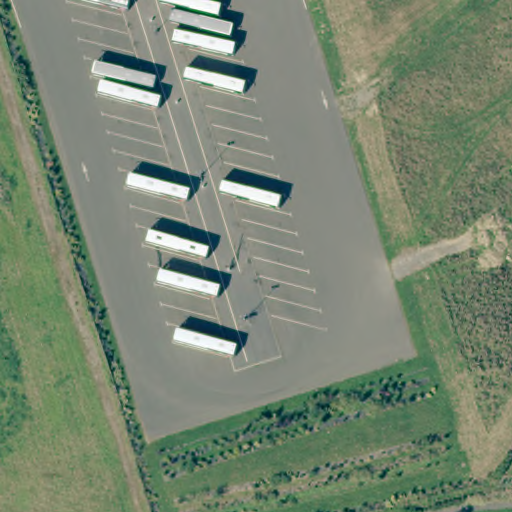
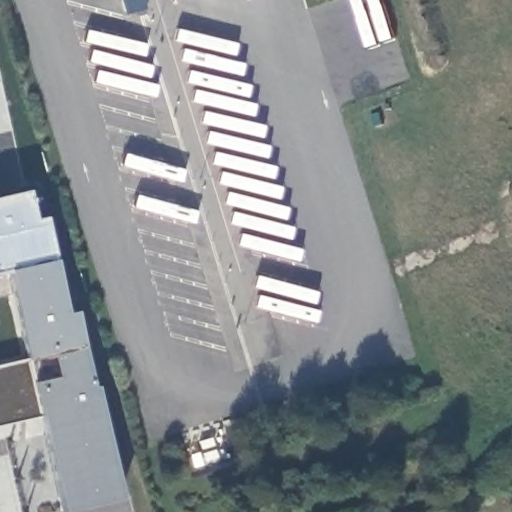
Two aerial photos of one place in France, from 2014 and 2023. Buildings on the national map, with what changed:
new [(60,511),(40,418),(0,426),(0,366),(27,360),(6,270),(53,259),(65,313),(75,311),(92,387),(95,386),(120,499),(60,511)]

